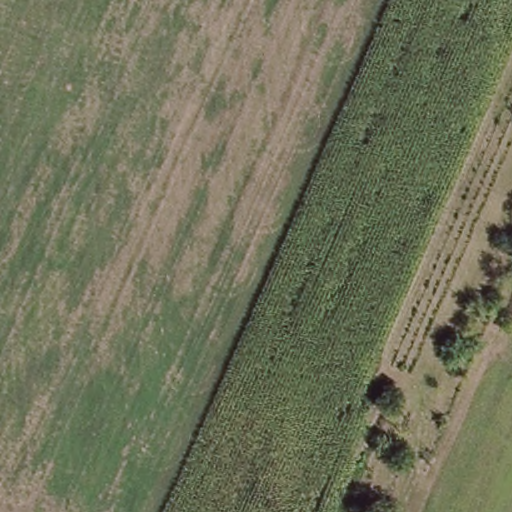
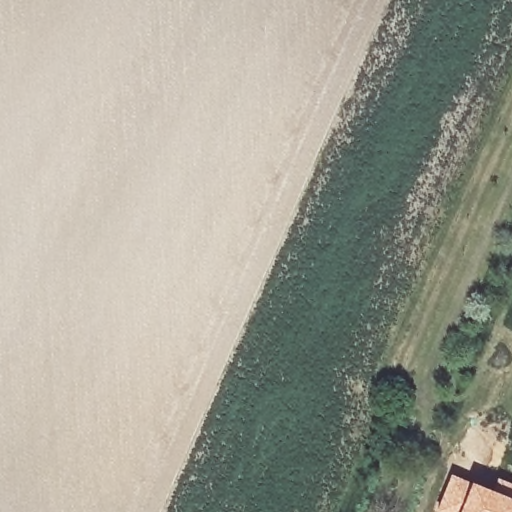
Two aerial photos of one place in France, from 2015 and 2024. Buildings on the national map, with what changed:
new [(451,474),(491,489),(497,476),(512,483),(512,512),(435,512),(451,474)]

